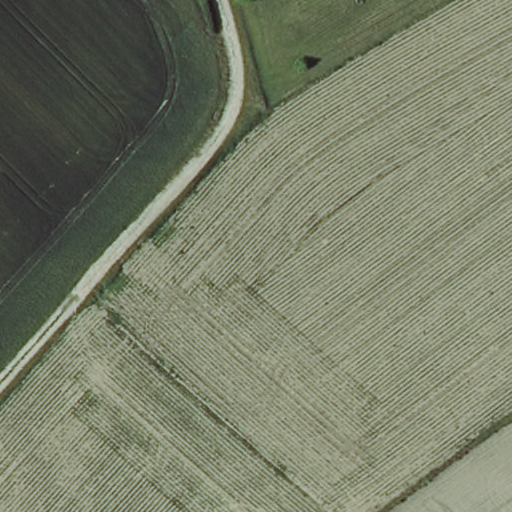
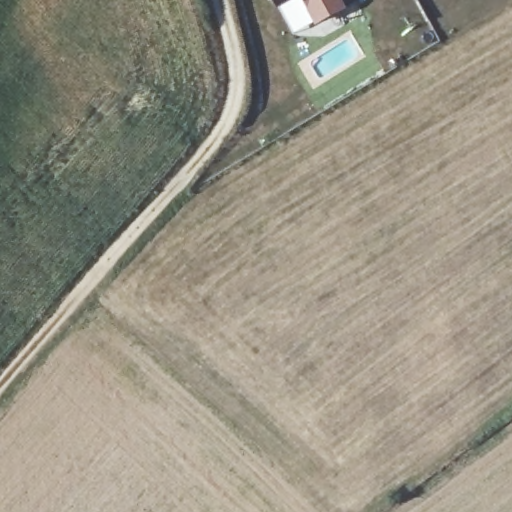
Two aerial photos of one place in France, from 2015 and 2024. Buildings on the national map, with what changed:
new [(275,0),(285,0),(277,4),(275,0)]
new [(317,22),(305,0),(339,0),(344,8),(317,22)]

